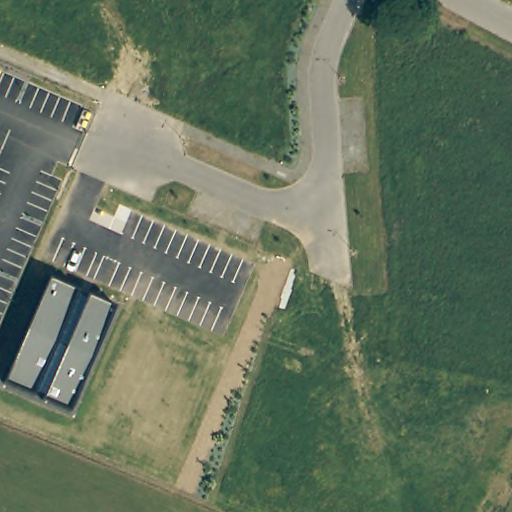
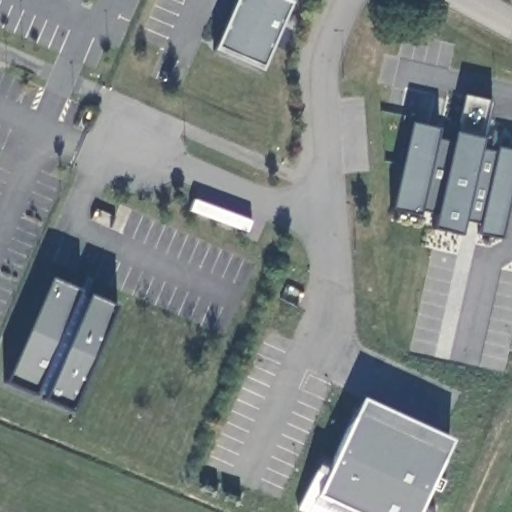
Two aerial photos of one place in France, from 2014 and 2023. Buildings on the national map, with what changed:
new [(262,71),(213,51),(235,0),(288,0),(292,2),(262,71)]
new [(501,238),(478,234),(481,222),(464,219),(461,233),(433,227),(437,213),(421,210),(420,215),(393,209),(412,124),(438,129),(437,138),(453,142),(456,131),(463,96),(489,102),(482,138),(481,148),(497,151),(497,147),(512,151),(512,186),(501,238)]
unchanged [(52,280),(78,291),(76,295),(90,301),(91,296),(115,307),(69,411),(44,399),(45,396),(34,392),(34,395),(6,383),(52,280)]
new [(420,512),(302,512),(297,510),(318,464),(328,469),(362,397),(452,440),(418,511),(420,512)]

